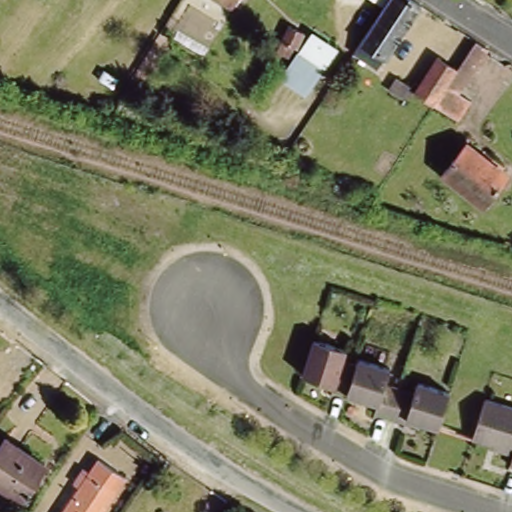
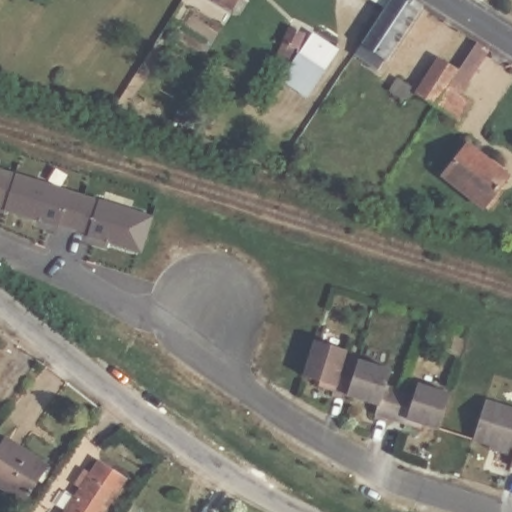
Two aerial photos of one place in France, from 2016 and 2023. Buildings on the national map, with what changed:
unchanged [(377,68),(352,51),(386,0),(419,0),(422,2),(377,68)]
unchanged [(280,71),(315,21),(344,45),(307,94),(280,71)]
unchanged [(300,39),(300,40),(295,50),(291,48),(290,49),(286,59),(275,53),(273,52),(283,31),(278,29),(280,23),(302,34),(300,39)]
unchanged [(493,44),(463,90),(476,99),(464,117),(440,101),(441,100),(482,37),(493,44)]
unchanged [(402,74),(416,84),(434,58),(439,61),(445,53),(462,65),(439,99),(422,88),(405,93),(394,86),(402,74)]
unchanged [(442,172),(466,141),(506,172),(482,202),(442,172)]
new [(140,252),(74,231),(75,229),(45,220),(45,222),(3,209),(4,207),(0,205),(0,168),(152,216),(140,252)]
unchanged [(410,384),(413,375),(447,387),(435,421),(401,409),(399,415),(373,406),(375,400),(328,383),(330,378),(305,369),(317,336),(342,345),(340,350),(354,355),(356,350),(387,361),(382,374),(396,379),(410,384)]
unchanged [(494,444),(495,440),(476,434),(477,434),(490,392),(512,399),(512,450),(494,444)]
unchanged [(0,478),(0,453),(10,437),(49,462),(27,495),(0,478)]
unchanged [(112,459),(132,473),(106,512),(71,512),(90,485),(80,478),(90,463),(100,470),(102,472),(112,459)]
unchanged [(10,507),(18,512),(6,512),(10,507)]
unchanged [(29,511),(31,512),(28,512),(29,511)]

